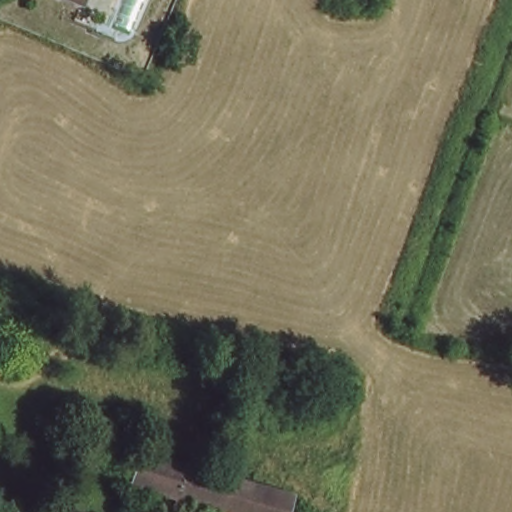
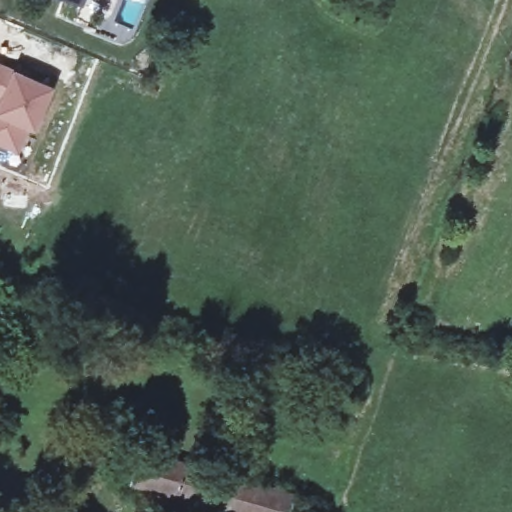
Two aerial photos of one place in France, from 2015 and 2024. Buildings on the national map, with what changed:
unchanged [(70,0),(92,0),(89,8),(70,0)]
new [(37,131),(29,129),(19,153),(0,144),(0,63),(18,70),(55,85),(37,131)]
unchanged [(300,496),(294,512),(207,512),(128,489),(147,449),(300,496)]

